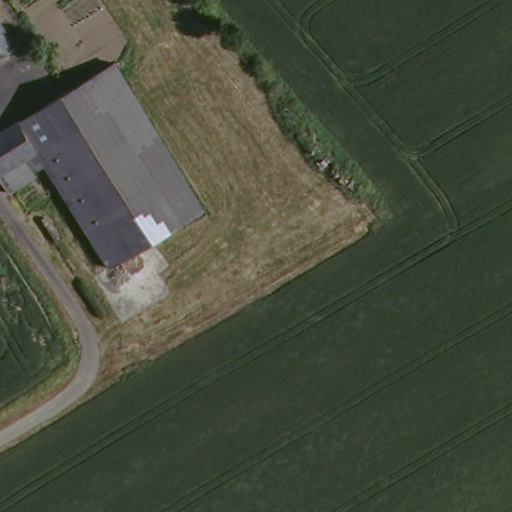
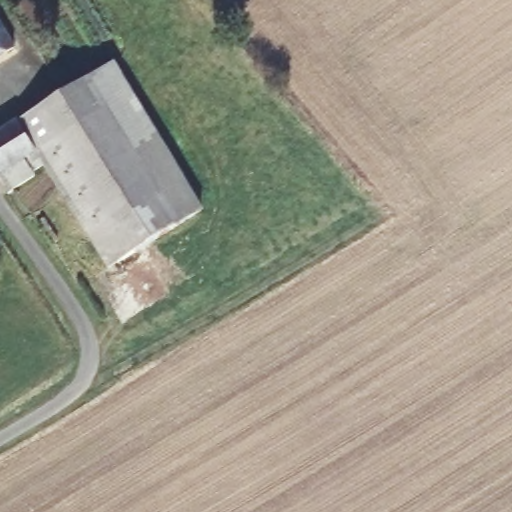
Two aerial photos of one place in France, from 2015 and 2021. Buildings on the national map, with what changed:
unchanged [(18,49),(0,59),(0,20),(18,49)]
unchanged [(42,103),(53,97),(108,62),(201,208),(135,250),(42,103)]
unchanged [(135,250),(107,267),(44,163),(32,171),(34,175),(12,188),(1,173),(37,149),(17,119),(42,103),(135,250)]
unchanged [(37,149),(1,173),(0,173),(0,131),(17,119),(37,149)]

